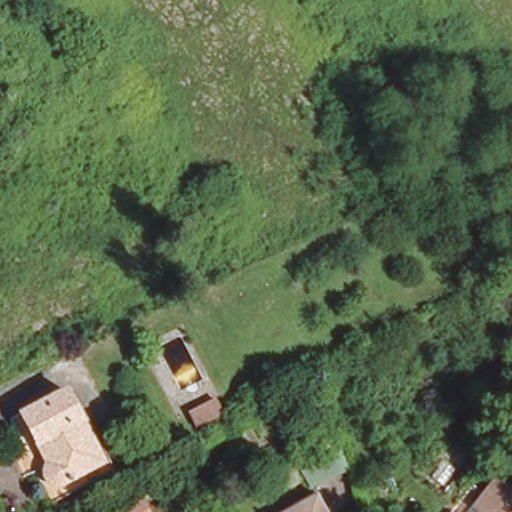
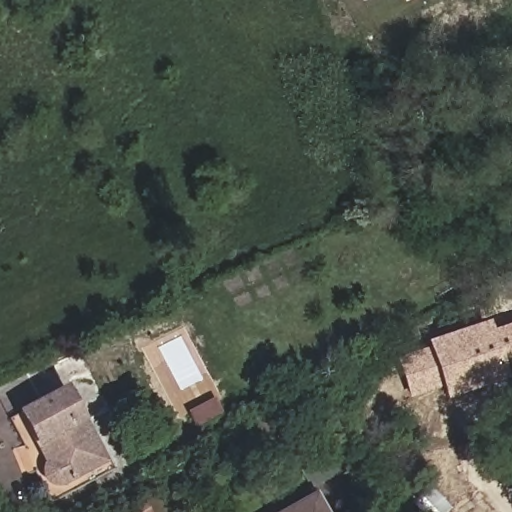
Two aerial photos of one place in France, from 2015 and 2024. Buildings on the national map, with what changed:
new [(397,356),(428,346),(427,341),(488,321),(491,329),(512,323),(512,385),(511,380),(446,400),(441,384),(408,398),(397,356)]
unchanged [(36,439),(32,441),(14,411),(62,386),(78,416),(36,439)]
unchanged [(102,461),(59,487),(50,488),(42,485),(36,478),(35,472),(37,464),(46,457),(36,439),(78,416),(102,461)]
unchanged [(502,486),(507,481),(512,486),(512,512),(463,512),(491,477),(502,486)]
unchanged [(326,512),(255,512),(309,482),(326,512)]
unchanged [(145,512),(119,512),(139,501),(145,512)]

